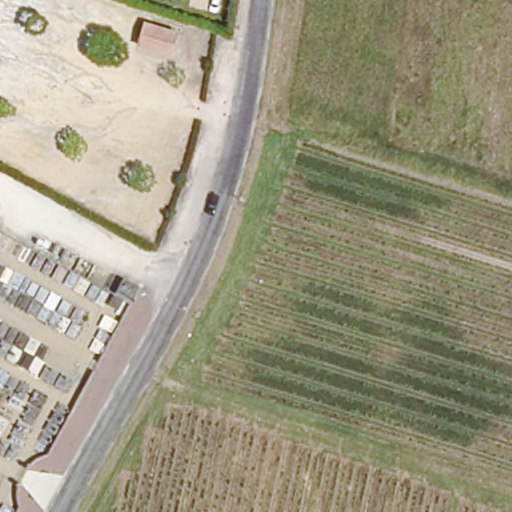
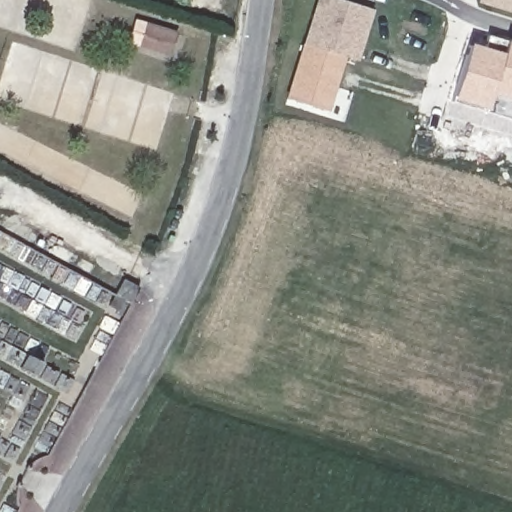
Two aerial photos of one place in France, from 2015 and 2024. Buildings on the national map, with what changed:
new [(321,0),(348,0),(375,8),(359,59),(347,55),(308,43),(321,0)]
new [(512,10),(483,1),(484,0),(512,0),(512,10)]
unchanged [(180,32),(169,58),(131,47),(144,19),(180,32)]
new [(491,35),(512,41),(512,118),(456,101),(470,47),(486,52),(491,35)]
new [(308,43),(347,55),(330,110),(290,98),(308,43)]

